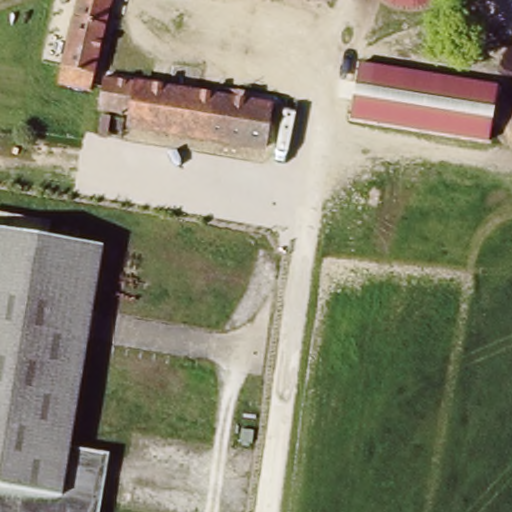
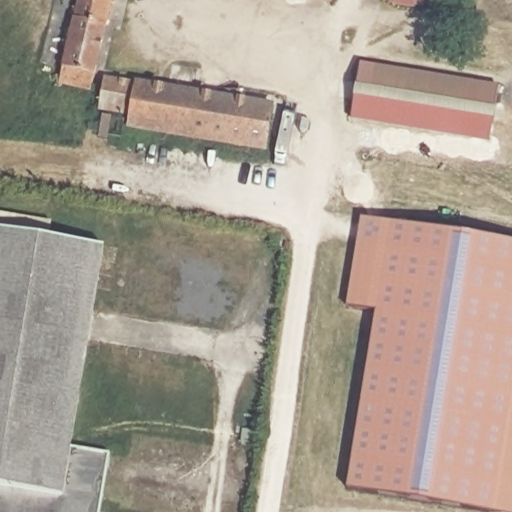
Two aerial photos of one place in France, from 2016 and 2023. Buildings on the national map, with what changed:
unchanged [(92,88),(57,84),(67,0),(102,0),(92,88)]
unchanged [(437,2),(415,11),(392,7),(381,0),(439,0),(437,2)]
unchanged [(359,63),(498,86),(490,141),(351,118),(359,63)]
unchanged [(274,101),(267,147),(136,130),(137,116),(99,111),(102,90),(104,77),(274,101)]
new [(375,311),(346,305),(360,216),(512,241),(512,512),(493,512),(348,489),(375,311)]
unchanged [(106,445),(95,512),(0,512),(0,225),(100,240),(70,440),(106,445)]

